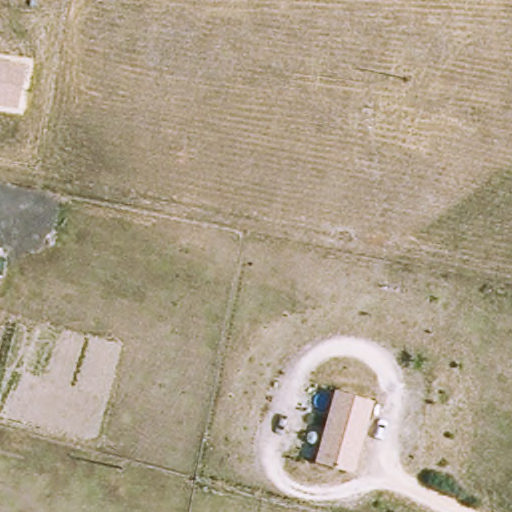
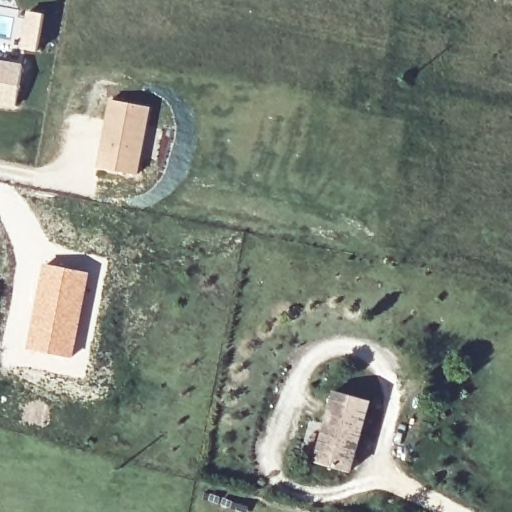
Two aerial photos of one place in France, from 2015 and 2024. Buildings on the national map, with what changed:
new [(27,9),(46,13),(39,53),(19,49),(27,9)]
unchanged [(23,65),(16,107),(0,104),(0,61),(23,65)]
new [(139,174),(96,167),(109,98),(152,107),(139,174)]
new [(43,263),(91,272),(74,359),(25,349),(43,263)]
unchanged [(372,402),(351,477),(311,466),(332,389),(372,402)]

